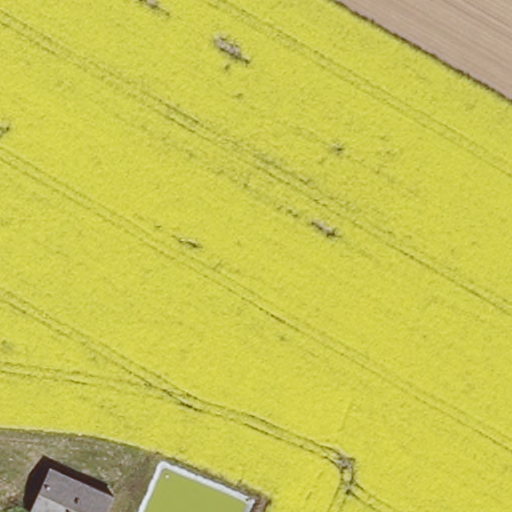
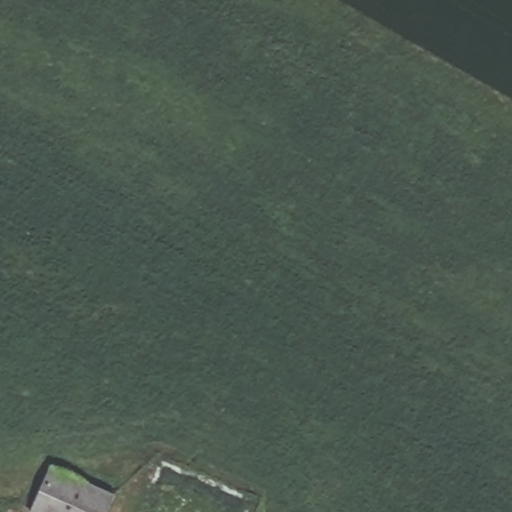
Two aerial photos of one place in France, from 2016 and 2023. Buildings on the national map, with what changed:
unchanged [(32,512),(30,511),(50,465),(113,493),(105,512),(32,512)]

